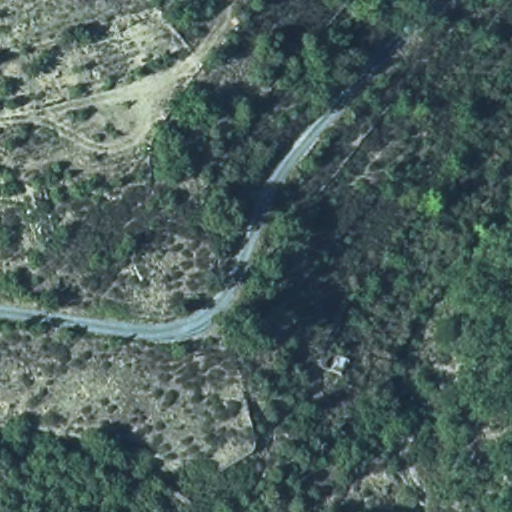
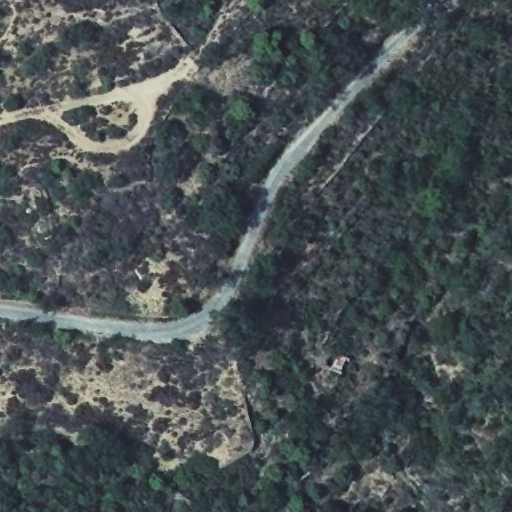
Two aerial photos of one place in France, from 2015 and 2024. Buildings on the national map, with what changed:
unchanged [(328,367),(334,351),(353,358),(346,374),(328,367)]

